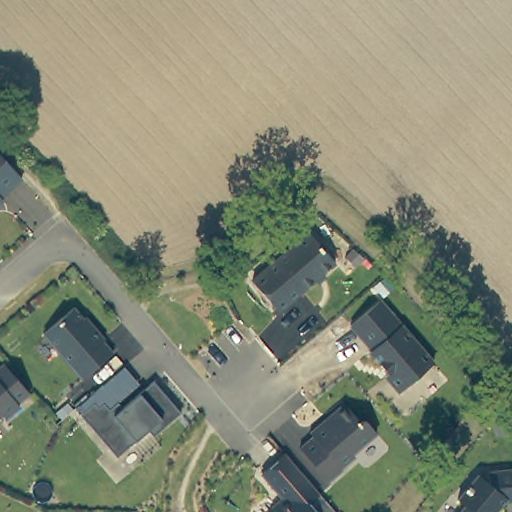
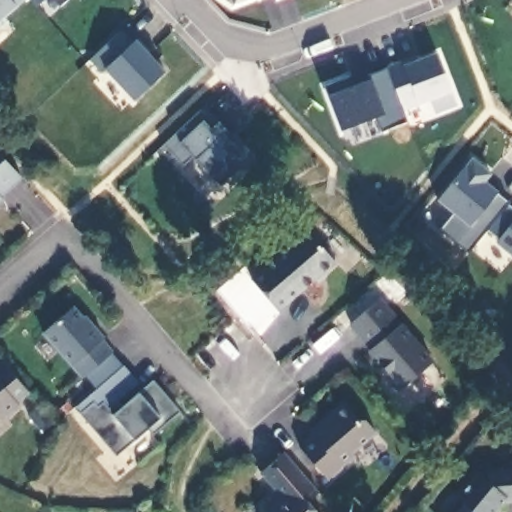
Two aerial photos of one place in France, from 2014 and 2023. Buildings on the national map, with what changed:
new [(23,0),(0,21),(0,0),(23,0)]
new [(32,0),(44,0),(36,6),(32,0)]
new [(135,100),(105,70),(102,74),(88,60),(122,30),(136,40),(166,71),(135,100)]
new [(387,70),(406,61),(409,66),(437,54),(452,91),(456,105),(436,114),(429,99),(418,103),(402,109),(387,70)]
new [(326,86),(351,78),(351,81),(387,70),(402,109),(406,121),(382,131),(377,118),(342,130),(326,86)]
new [(222,186),(213,177),(193,156),(183,166),(164,145),(204,106),(218,121),(228,131),(224,134),(231,142),(235,135),(253,156),(222,186)]
unchanged [(0,192),(0,158),(18,177),(0,192)]
new [(499,239),(487,228),(468,253),(440,230),(454,213),(437,200),(473,158),(493,174),(486,182),(508,202),(512,205),(512,257),(495,243),(499,239)]
unchanged [(249,278),(306,229),(320,246),(325,245),(331,254),(332,260),(275,309),(249,278)]
unchanged [(347,323),(376,298),(430,360),(396,390),(382,374),(385,371),(366,350),(368,348),(347,323)]
unchanged [(69,305),(86,324),(88,322),(100,337),(99,339),(109,350),(78,377),(38,332),(69,305)]
unchanged [(26,392),(14,403),(17,406),(2,417),(0,414),(0,362),(26,392)]
unchanged [(149,379),(177,410),(150,434),(144,428),(115,456),(77,414),(90,402),(84,397),(98,384),(119,407),(149,379)]
unchanged [(312,435),(308,431),(322,420),(325,423),(331,418),(331,412),(342,403),(356,419),(364,419),(374,432),(350,452),(352,455),(339,466),(339,468),(326,480),(298,446),(312,435)]
unchanged [(307,480),(315,490),(304,501),(314,512),(269,512),(276,506),(276,498),(279,496),(257,471),(282,451),(307,480)]
unchanged [(487,468),(512,465),(512,497),(502,498),(491,512),(455,512),(464,501),(456,495),(476,471),(487,480),(487,468)]

